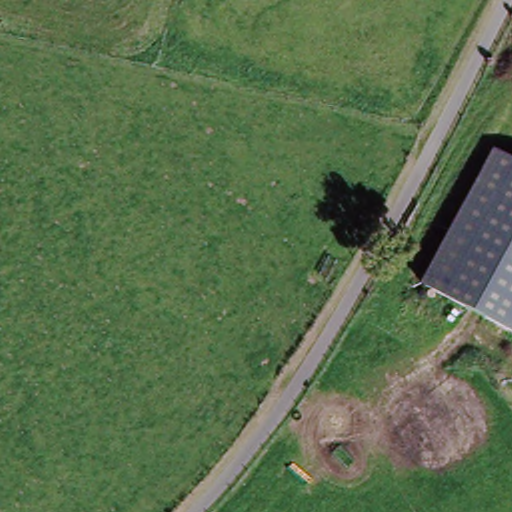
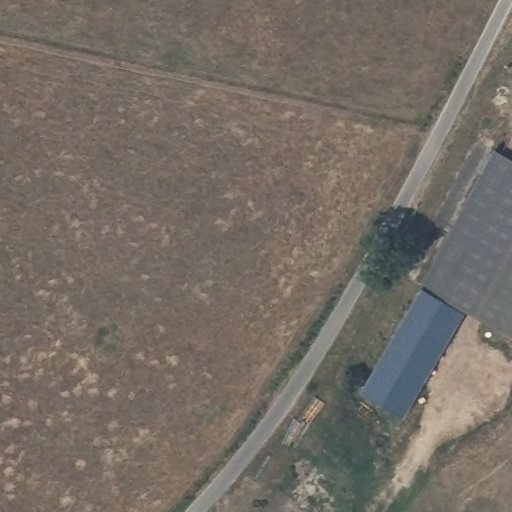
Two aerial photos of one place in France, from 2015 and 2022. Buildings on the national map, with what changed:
unchanged [(420,287),(494,150),(512,159),(512,337),(420,287)]
new [(465,311),(405,416),(361,388),(420,287),(465,311)]

